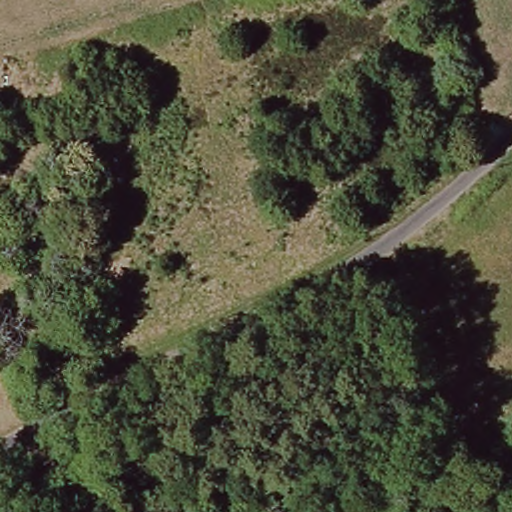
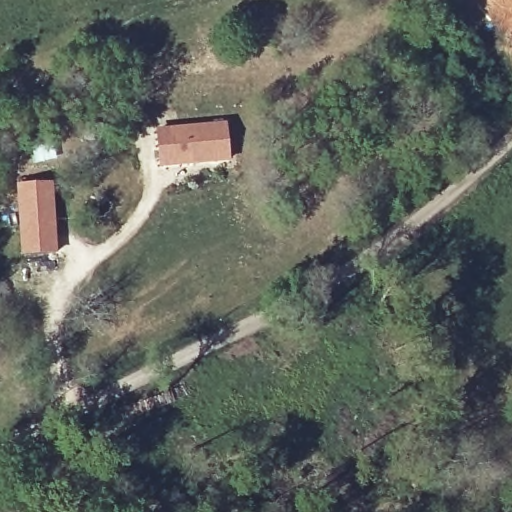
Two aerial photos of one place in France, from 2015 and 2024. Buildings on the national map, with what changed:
new [(156,128),(227,121),(232,161),(160,168),(156,128)]
new [(51,185),(54,256),(21,257),(19,186),(51,185)]
unchanged [(97,459),(67,458),(67,437),(97,438),(97,459)]

